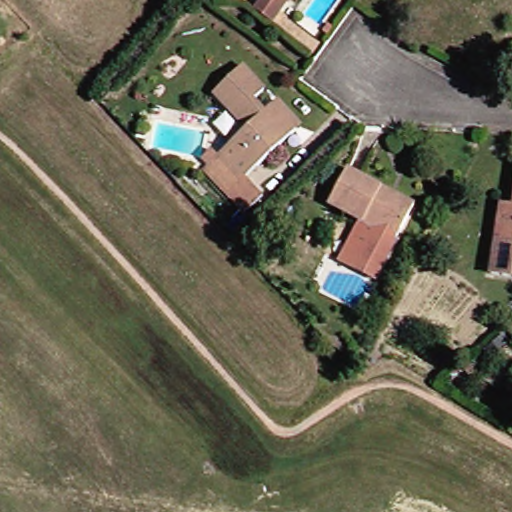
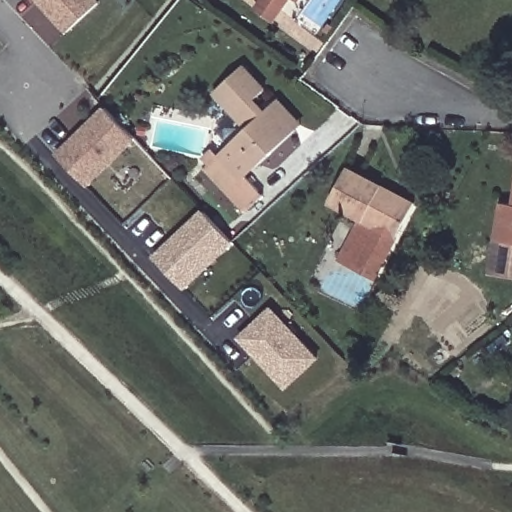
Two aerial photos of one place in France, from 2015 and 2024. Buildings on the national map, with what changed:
new [(97,6),(66,34),(35,0),(92,0),(97,6)]
unchanged [(251,10),(258,0),(284,0),(275,11),(267,22),(251,10)]
unchanged [(292,2),(289,0),(293,0),(292,2)]
unchanged [(328,36),(323,32),(329,25),(333,28),(328,36)]
unchanged [(206,151),(212,157),(242,130),(209,94),(238,67),(260,91),(250,101),(260,112),(267,106),(272,101),(296,126),(290,131),(240,177),(257,197),(240,212),(199,169),(204,165),(198,159),(206,151)]
new [(104,109),(134,139),(85,186),(56,156),(104,109)]
unchanged [(324,204),(342,170),(377,189),(409,206),(405,212),(370,278),(336,261),(357,222),(324,204)]
unchanged [(490,274),(501,204),(512,206),(512,277),(490,274)]
new [(152,256),(201,210),(235,243),(185,290),(152,256)]
new [(237,337),(271,306),(320,358),(285,389),(237,337)]

